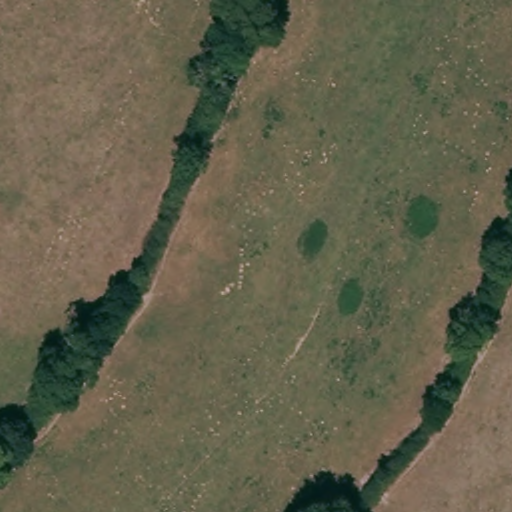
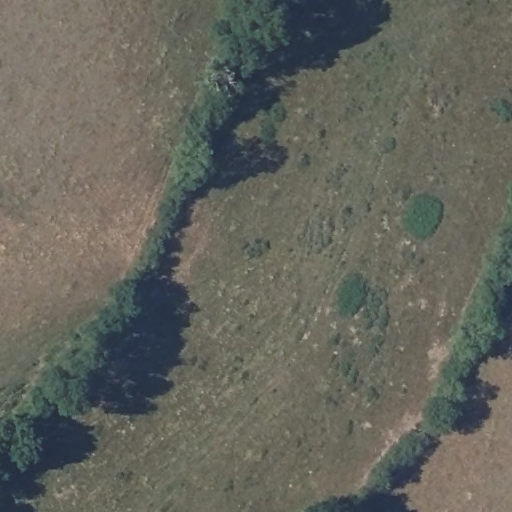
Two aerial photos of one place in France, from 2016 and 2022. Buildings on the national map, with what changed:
[]

